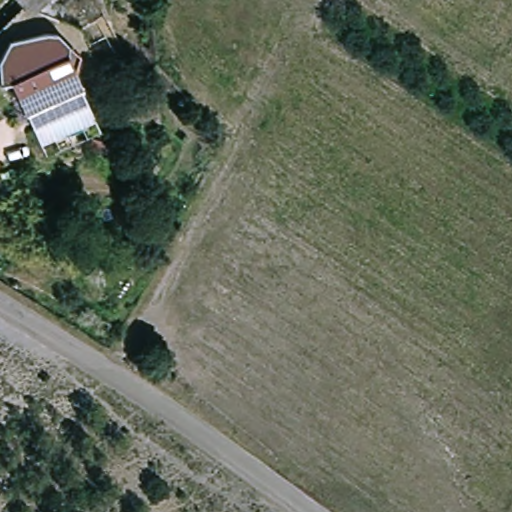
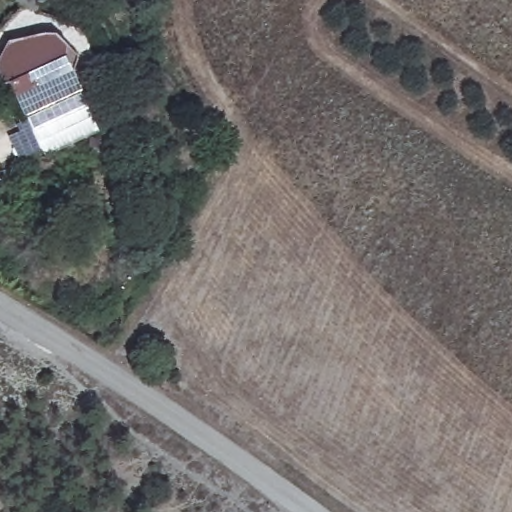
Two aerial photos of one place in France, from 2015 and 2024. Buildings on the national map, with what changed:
unchanged [(32,11),(21,0),(44,0),(32,11)]
unchanged [(26,110),(14,79),(1,81),(0,60),(10,39),(55,32),(67,42),(69,54),(81,86),(26,110)]

